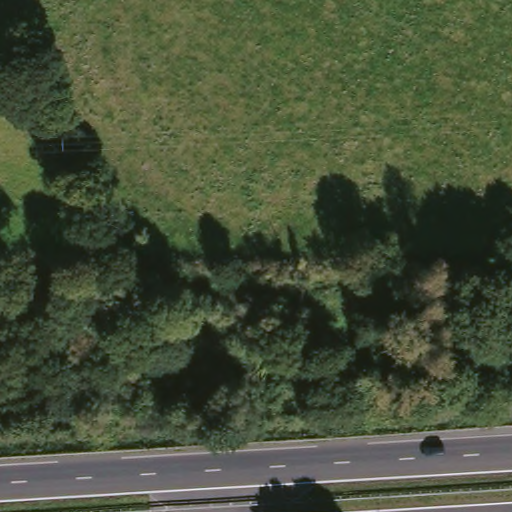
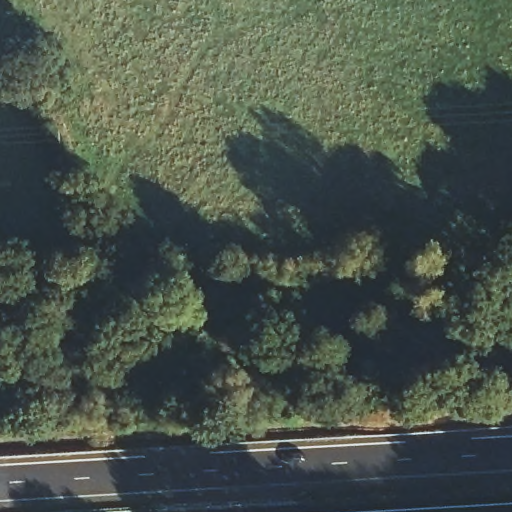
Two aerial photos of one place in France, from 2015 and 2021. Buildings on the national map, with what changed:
[]

